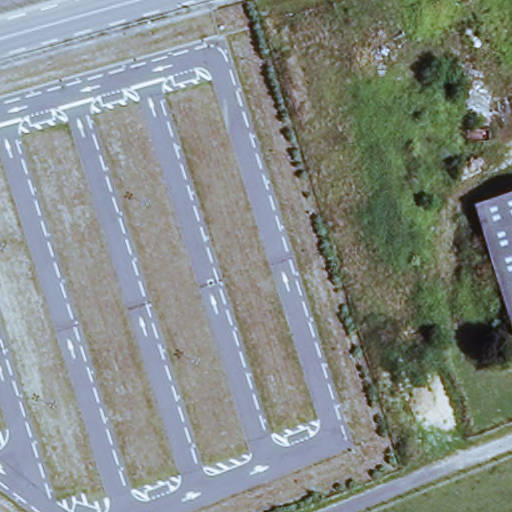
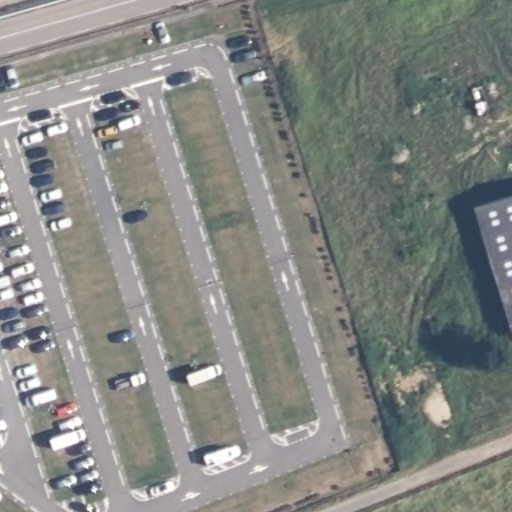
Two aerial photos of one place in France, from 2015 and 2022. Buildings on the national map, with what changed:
unchanged [(512,192),(512,314),(467,211),(512,192)]

